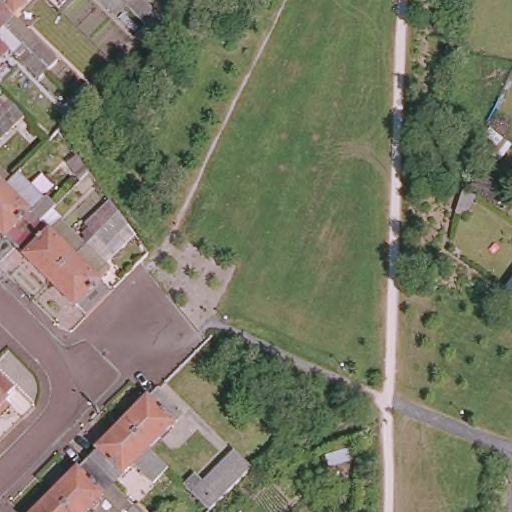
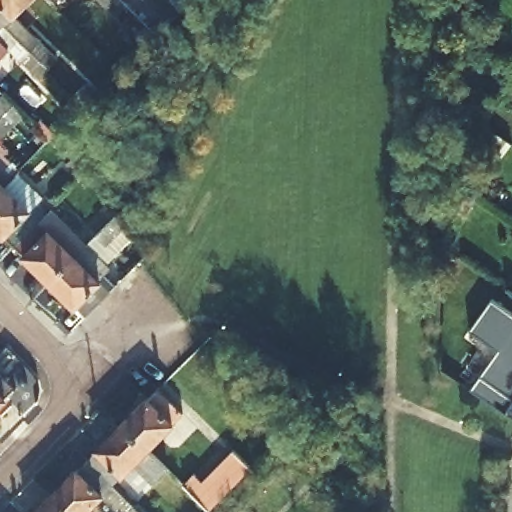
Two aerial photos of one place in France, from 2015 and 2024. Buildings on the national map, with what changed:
unchanged [(11,13),(64,64),(54,74),(46,66),(0,21),(0,0),(24,0),(11,13)]
unchanged [(123,3),(112,13),(98,0),(120,0),(123,3)]
unchanged [(164,21),(152,32),(123,3),(120,0),(142,0),(164,21)]
unchanged [(46,66),(36,75),(6,46),(0,53),(0,21),(46,66)]
unchanged [(0,130),(0,93),(8,101),(19,112),(0,130)]
unchanged [(63,106),(74,94),(84,104),(73,115),(63,106)]
unchanged [(3,170),(0,174),(0,167),(3,170)]
unchanged [(33,213),(8,238),(0,231),(0,181),(33,213)]
unchanged [(79,309),(43,274),(69,248),(111,205),(125,223),(105,243),(101,239),(91,248),(105,262),(94,273),(104,283),(79,309)]
unchanged [(69,248),(43,274),(8,238),(33,213),(69,248)]
demolished [(309,234),(308,250),(293,250),(292,234),(309,234)]
new [(512,406),(507,413),(472,387),(499,349),(471,329),(492,299),(512,313),(512,406)]
unchanged [(14,387),(0,402),(0,373),(14,387)]
unchanged [(184,414),(149,450),(123,424),(158,389),(184,414)]
unchanged [(123,424),(149,450),(114,485),(88,459),(123,424)]
unchanged [(149,450),(167,467),(131,502),(114,485),(149,450)]
unchanged [(221,499),(211,510),(186,485),(198,474),(206,483),(238,452),(253,467),(221,499)]
unchanged [(114,485),(131,502),(136,507),(142,512),(119,512),(103,497),(89,512),(71,512),(53,494),(88,459),(114,485)]
unchanged [(71,512),(36,512),(53,494),(71,512)]

